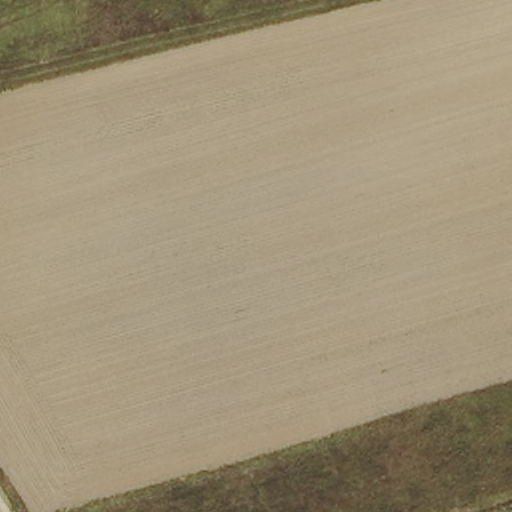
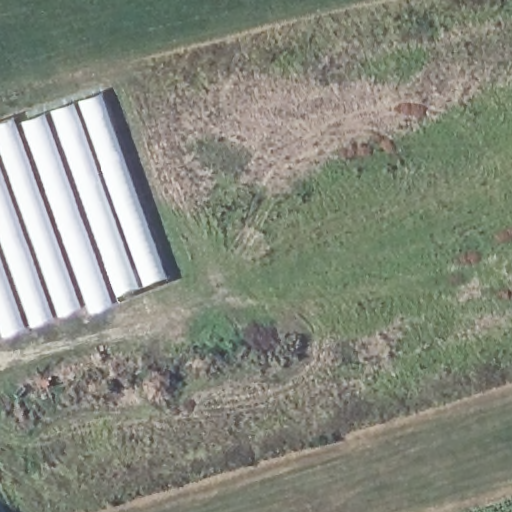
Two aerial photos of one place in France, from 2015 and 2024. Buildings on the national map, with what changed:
new [(17,114),(18,117),(100,90),(112,122),(129,177),(169,281),(127,298),(85,312),(84,309),(62,315),(0,336),(0,119),(17,114)]

